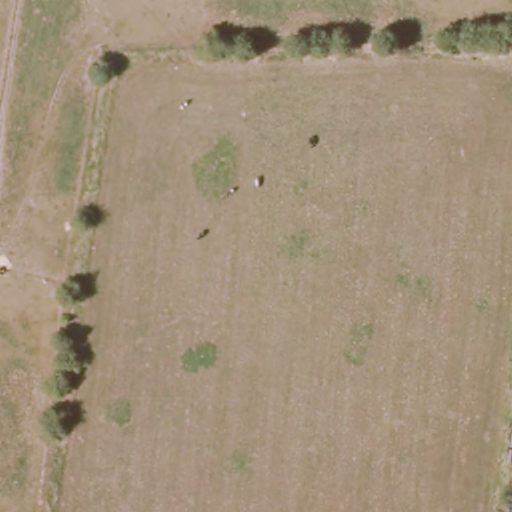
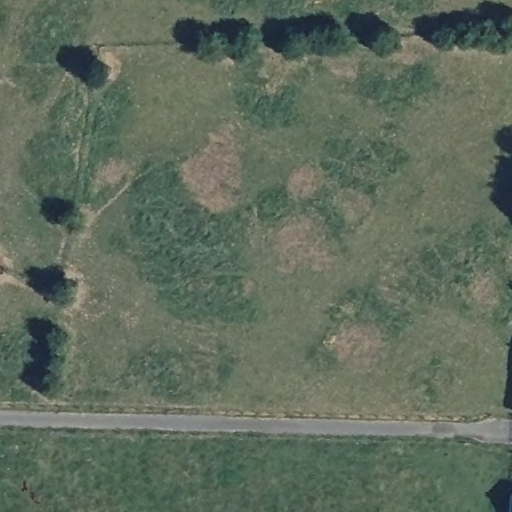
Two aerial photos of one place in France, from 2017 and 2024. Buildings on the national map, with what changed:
[]

